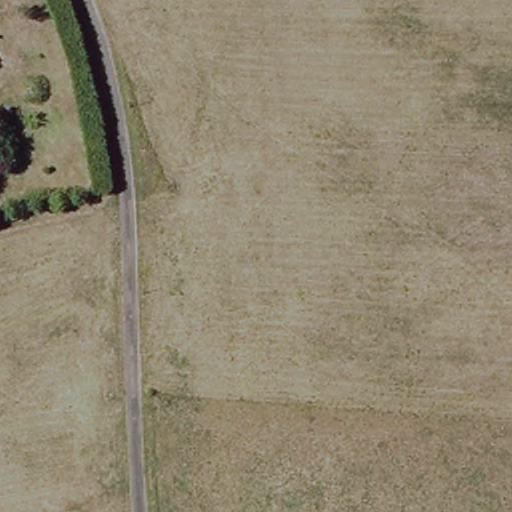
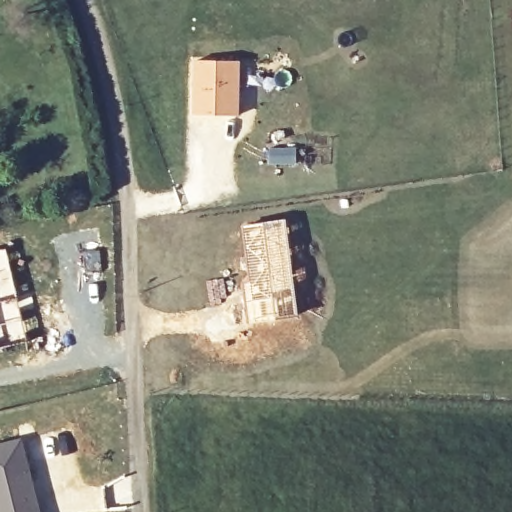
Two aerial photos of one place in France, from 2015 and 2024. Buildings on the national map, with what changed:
new [(193,59),(240,60),(239,115),(190,114),(193,59)]
new [(287,218),(299,315),(252,323),(247,282),(249,282),(243,225),(287,218)]
new [(26,339),(0,347),(0,248),(6,247),(26,339)]
new [(41,508),(42,512),(0,512),(0,442),(21,437),(41,508)]

